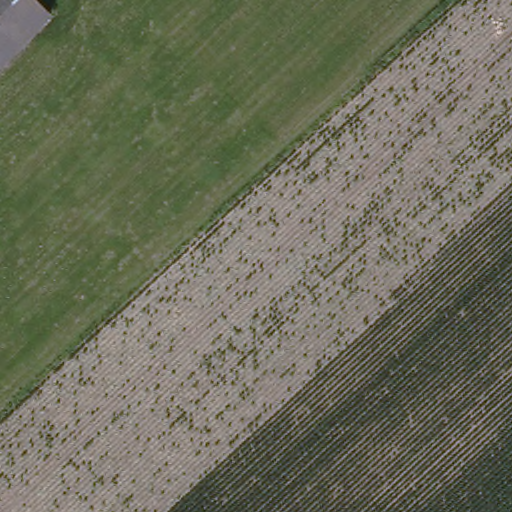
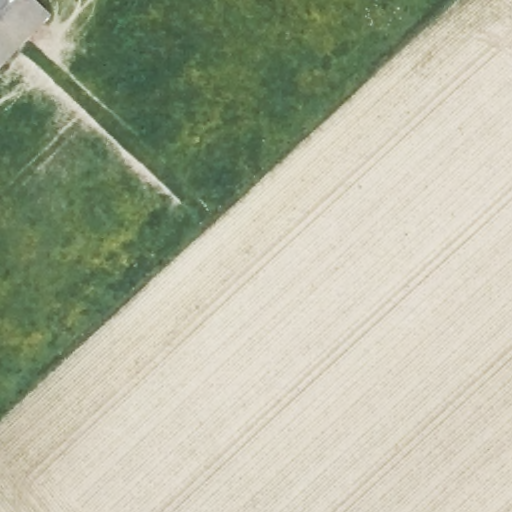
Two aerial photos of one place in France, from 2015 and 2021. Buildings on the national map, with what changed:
unchanged [(0,0),(33,0),(52,19),(0,74),(0,0)]

